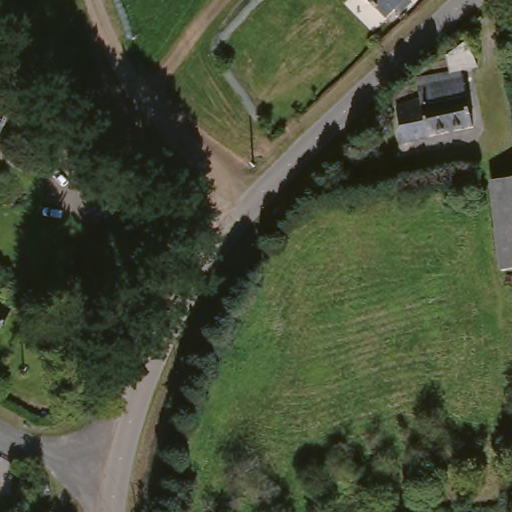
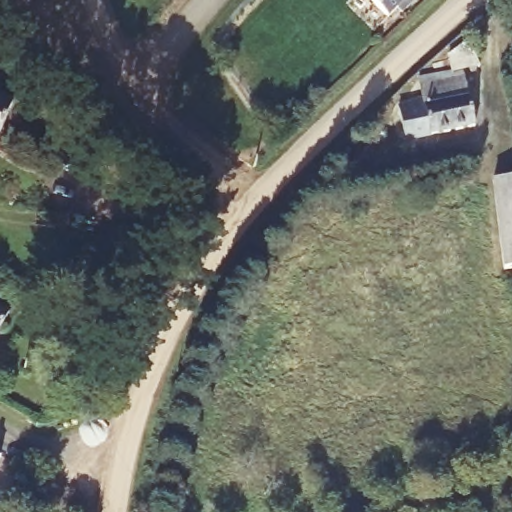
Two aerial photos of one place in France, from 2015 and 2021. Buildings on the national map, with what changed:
unchanged [(361,2),(364,0),(408,0),(383,25),(361,2)]
unchanged [(391,112),(414,106),(411,87),(454,79),(466,131),(398,147),(391,112)]
unchanged [(0,128),(0,107),(8,110),(0,128)]
unchanged [(491,184),(512,182),(512,276),(501,277),(491,184)]
unchanged [(0,314),(0,310),(1,311),(0,314)]
unchanged [(0,455),(0,454),(1,454),(0,455)]

